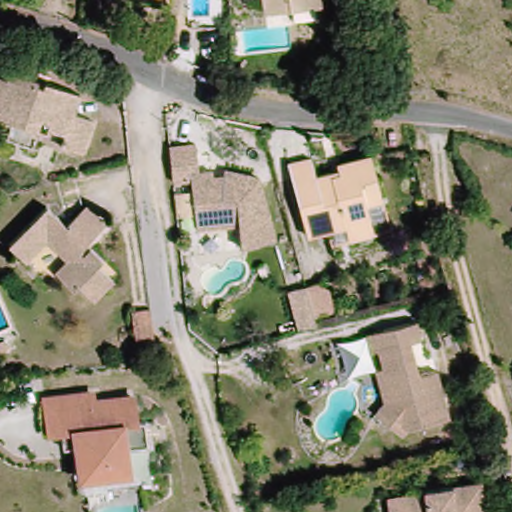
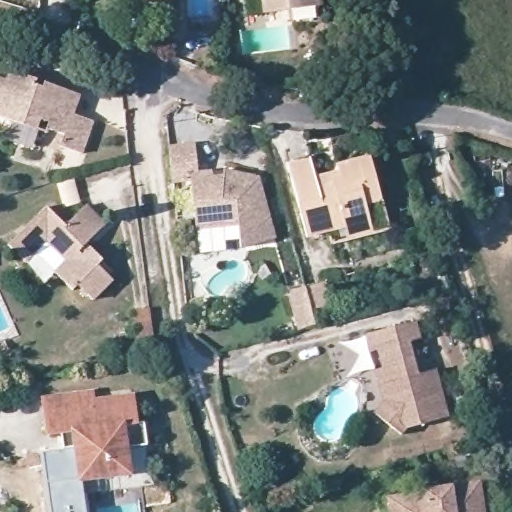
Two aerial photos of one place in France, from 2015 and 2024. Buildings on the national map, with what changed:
unchanged [(315,11),(265,17),(262,0),(318,0),(320,10),(315,11)]
unchanged [(94,120),(82,155),(61,147),(65,135),(47,129),(49,123),(41,120),(37,131),(0,118),(0,77),(8,80),(11,71),(37,80),(35,84),(43,86),(44,83),(79,95),(73,113),(94,120)]
unchanged [(169,150),(195,147),(198,176),(211,175),(212,185),(223,185),(224,174),(259,176),(275,237),(241,246),(238,228),(196,232),(191,183),(173,185),(169,150)]
unchanged [(332,231),(312,236),(293,164),(315,159),(321,180),(344,173),(342,165),(376,156),(388,200),(395,228),(379,232),(352,240),(336,244),(332,231)]
unchanged [(81,250),(84,254),(89,248),(102,261),(97,266),(112,280),(94,300),(79,285),(75,290),(55,271),(67,259),(48,240),(27,261),(11,245),(47,207),(67,227),(86,206),(105,225),(81,250)]
unchanged [(328,285),(329,291),(333,290),(340,315),(314,322),(305,290),(328,285)]
unchanged [(151,310),(155,350),(138,352),(133,312),(151,310)]
unchanged [(442,407),(444,416),(402,427),(396,435),(372,412),(383,400),(366,340),(364,332),(417,318),(419,325),(442,407)]
unchanged [(8,347),(0,351),(0,342),(5,340),(8,347)]
unchanged [(64,450),(62,435),(50,437),(46,401),(93,395),(95,403),(134,398),(137,425),(145,423),(148,446),(126,450),(129,473),(82,480),(78,448),(72,449),(64,450)]
new [(64,450),(72,449),(78,448),(82,480),(83,480),(106,476),(108,490),(84,493),(86,512),(48,512),(40,453),(64,450)]
unchanged [(485,512),(402,512),(400,500),(425,496),(423,483),(479,474),(481,486),(485,512)]
unchanged [(389,512),(386,490),(423,483),(425,496),(400,500),(402,512),(389,512)]

